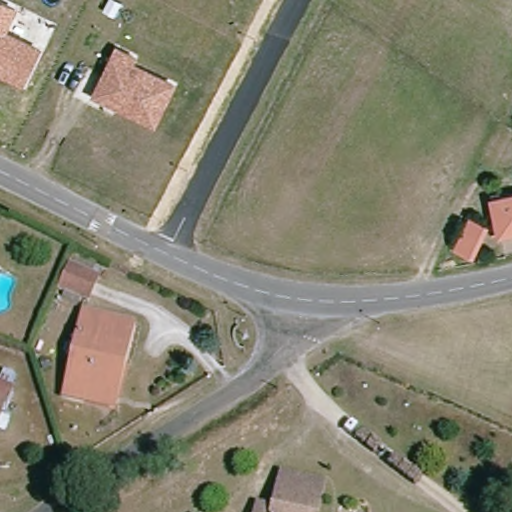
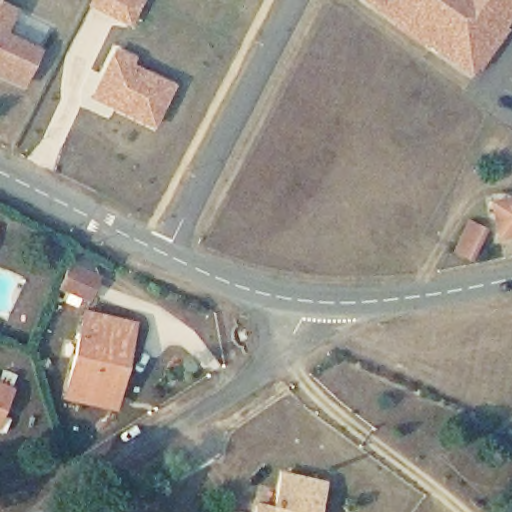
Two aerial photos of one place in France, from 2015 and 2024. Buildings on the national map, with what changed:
new [(86,6),(89,0),(144,0),(133,25),(86,6)]
new [(510,30),(482,70),(479,68),(472,75),(360,1),(361,0),(512,0),(512,19),(507,27),(510,30)]
unchanged [(43,49),(25,89),(0,77),(0,1),(18,10),(7,31),(43,49)]
unchanged [(138,57),(136,64),(177,85),(155,130),(90,97),(116,47),(138,57)]
unchanged [(499,236),(491,202),(512,198),(512,234),(499,236)]
unchanged [(471,258),(456,250),(469,223),(484,230),(471,258)]
unchanged [(88,300),(59,288),(69,264),(98,276),(88,300)]
unchanged [(91,402),(65,396),(85,312),(134,323),(126,359),(115,408),(91,402)]
unchanged [(0,416),(0,385),(11,390),(0,416)]
unchanged [(259,505),(275,508),(283,473),(324,482),(317,512),(257,512),(259,505)]

